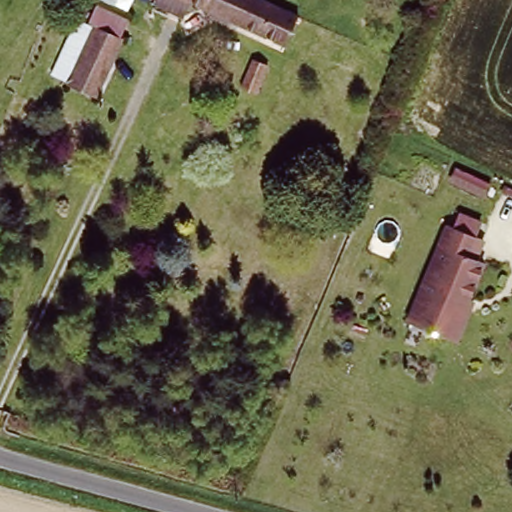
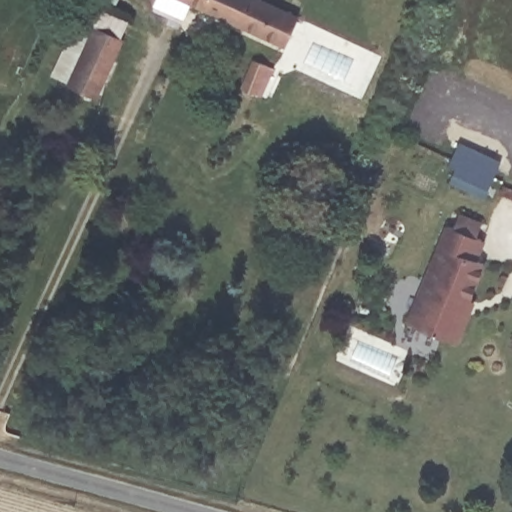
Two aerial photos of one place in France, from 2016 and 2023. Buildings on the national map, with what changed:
unchanged [(297,20),(283,49),(179,0),(254,0),(297,20)]
unchanged [(95,31),(122,43),(95,101),(69,90),(95,31)]
unchanged [(261,66),(264,60),(274,65),(258,100),(240,92),(253,62),(261,66)]
new [(457,170),(449,165),(460,143),(502,162),(487,199),(450,184),(457,170)]
unchanged [(480,215),(470,230),(480,235),(467,253),(482,258),(452,336),(403,317),(442,220),(449,220),(457,209),(480,215)]

